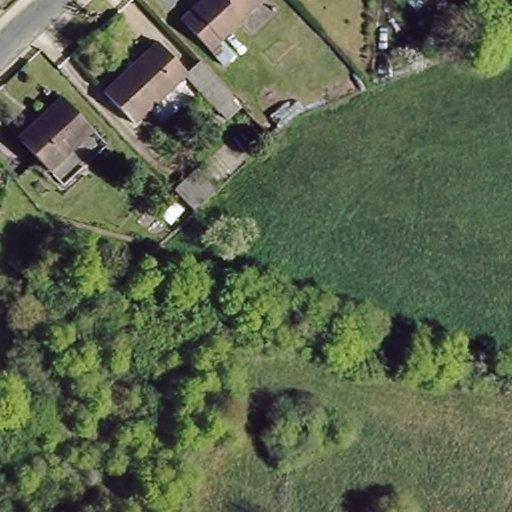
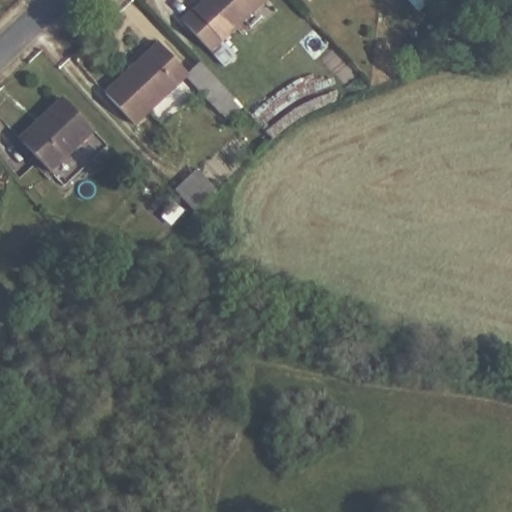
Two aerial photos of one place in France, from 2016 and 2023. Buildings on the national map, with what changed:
unchanged [(179,18),(199,0),(262,0),(207,49),(179,18)]
unchanged [(105,88),(156,41),(185,72),(133,119),(105,88)]
unchanged [(220,108),(185,72),(197,60),(232,97),(220,108)]
unchanged [(18,139),(62,99),(93,132),(48,172),(18,139)]
unchanged [(165,196),(186,176),(208,199),(186,219),(165,196)]

